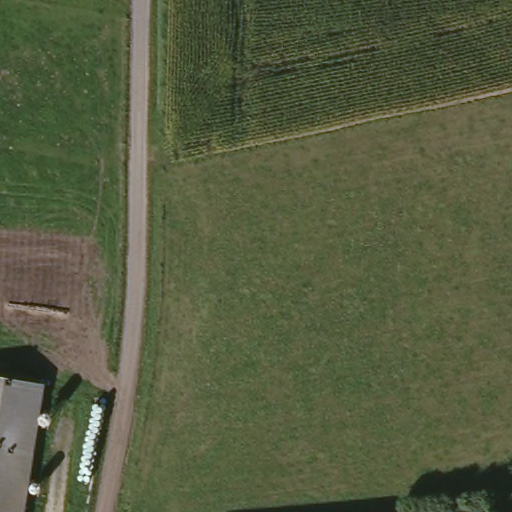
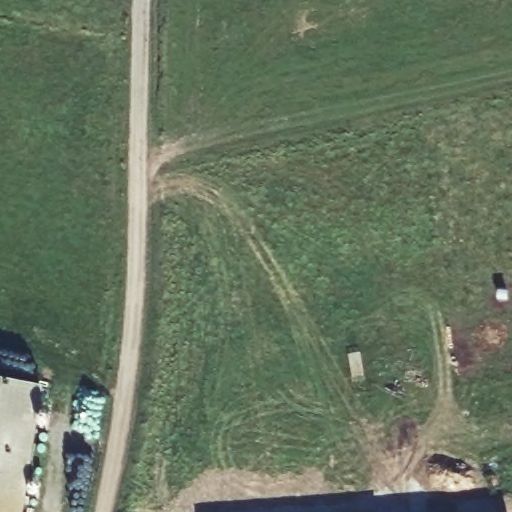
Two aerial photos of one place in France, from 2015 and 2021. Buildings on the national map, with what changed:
unchanged [(20,512),(0,512),(0,378),(44,387),(20,512)]

